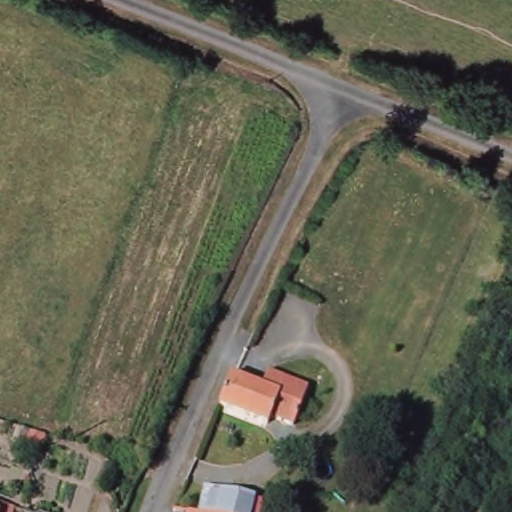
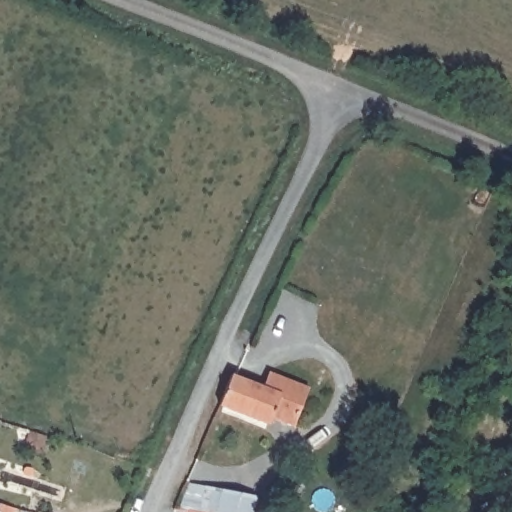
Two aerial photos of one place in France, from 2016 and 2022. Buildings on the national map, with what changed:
unchanged [(250,388),(257,370),(279,378),(305,388),(298,407),(289,427),(267,417),(263,427),(213,409),(225,378),(250,388)]
unchanged [(38,457),(22,451),(29,430),(46,435),(38,457)]
unchanged [(256,497),(252,512),(199,512),(203,486),(256,497)]
unchanged [(14,509),(13,512),(0,512),(0,504),(14,509)]

